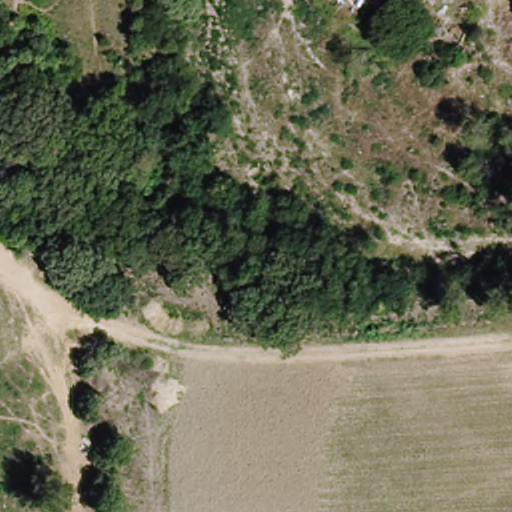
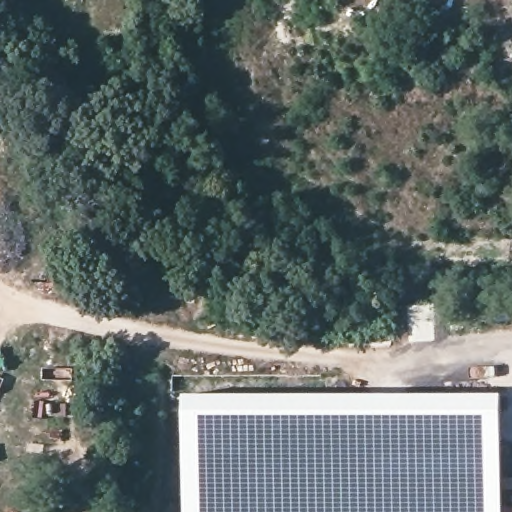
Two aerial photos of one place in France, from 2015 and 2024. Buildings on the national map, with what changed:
new [(502,512),(183,512),(182,395),(502,395),(502,512)]

